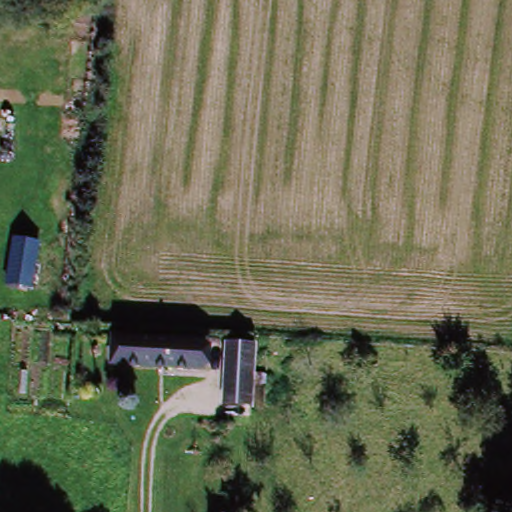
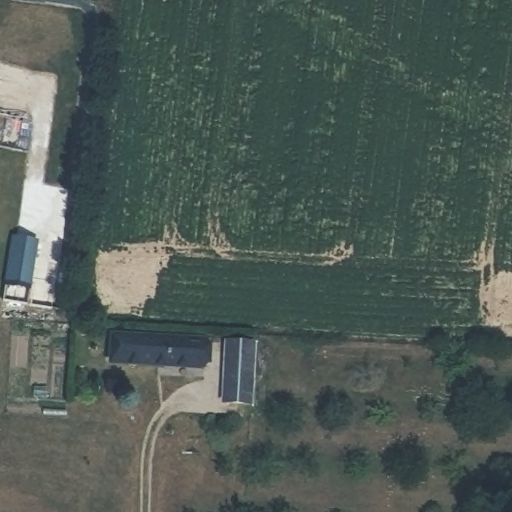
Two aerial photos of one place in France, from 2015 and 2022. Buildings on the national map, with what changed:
unchanged [(37,289),(8,284),(16,231),(45,235),(37,289)]
unchanged [(212,372),(129,373),(130,347),(211,345),(212,372)]
unchanged [(258,407),(229,407),(230,348),(257,346),(258,407)]

